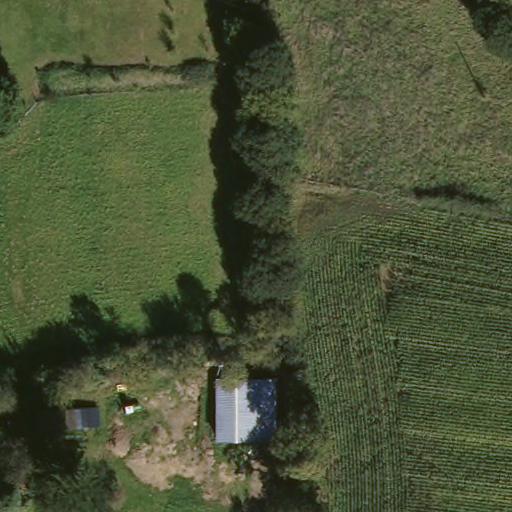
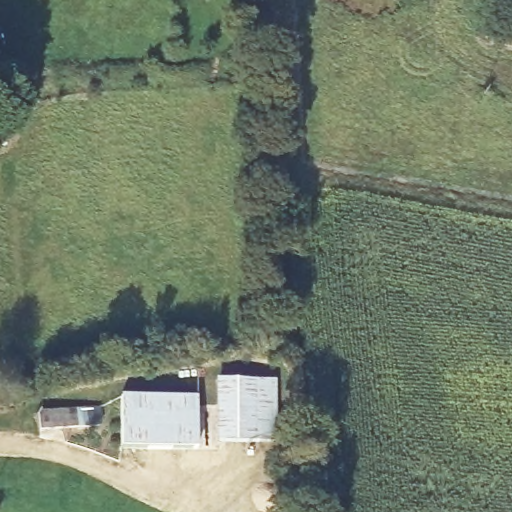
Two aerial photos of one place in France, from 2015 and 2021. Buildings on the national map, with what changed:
unchanged [(277,380),(276,442),(215,439),(215,378),(277,380)]
new [(122,395),(197,396),(197,447),(122,447),(122,395)]
new [(39,411),(100,406),(102,425),(41,430),(39,411)]

